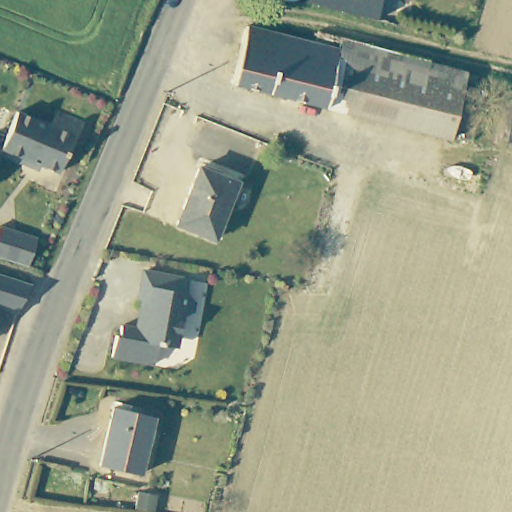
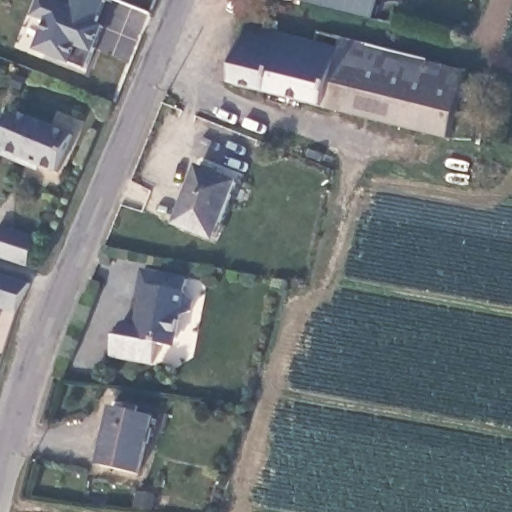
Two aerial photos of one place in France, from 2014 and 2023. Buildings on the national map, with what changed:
new [(97,22),(104,25),(92,53),(85,68),(71,62),(70,63),(34,49),(45,21),(30,15),(38,0),(55,0),(70,7),(73,0),(106,0),(97,22)]
unchanged [(298,5),(277,0),(300,0),(298,5)]
unchanged [(335,14),(298,5),(299,2),(300,0),(356,0),(350,18),(335,14)]
unchanged [(356,0),(381,0),(374,24),(350,18),(356,0)]
unchanged [(229,80),(244,25),(313,42),(316,31),(341,38),(324,105),(229,80)]
unchanged [(324,105),(341,38),(343,38),(380,48),(364,115),(324,105)]
unchanged [(446,137),(364,115),(380,48),(462,70),(446,137)]
unchanged [(77,138),(62,175),(35,164),(28,167),(3,157),(4,155),(20,116),(20,115),(77,138)]
unchanged [(3,157),(0,164),(0,153),(4,155),(3,157)]
unchanged [(212,236),(176,222),(198,167),(234,182),(212,236)]
unchanged [(0,259),(0,229),(35,240),(26,267),(0,259)]
unchanged [(182,294),(194,296),(193,311),(186,311),(174,319),(172,345),(154,344),(152,365),(112,361),(116,324),(134,326),(138,267),(184,272),(182,294)]
unchanged [(32,285),(16,312),(0,308),(0,275),(32,285)]
unchanged [(97,465),(111,406),(152,416),(138,474),(97,465)]

